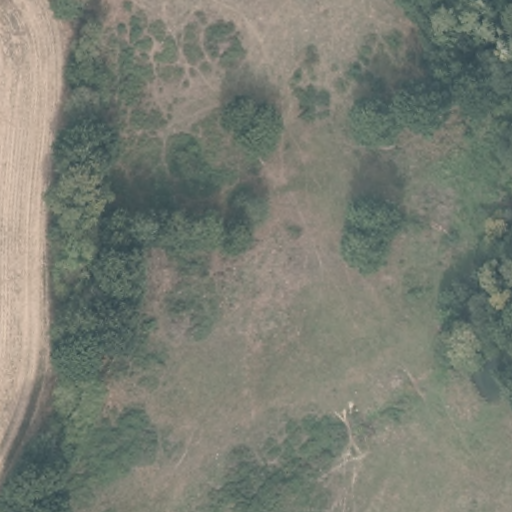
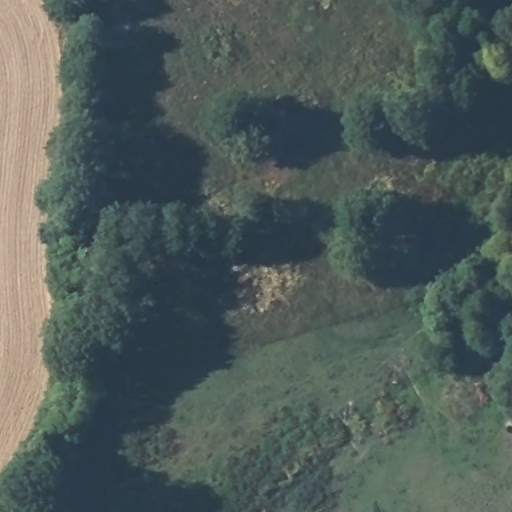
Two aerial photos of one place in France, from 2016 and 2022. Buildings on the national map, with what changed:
[]

